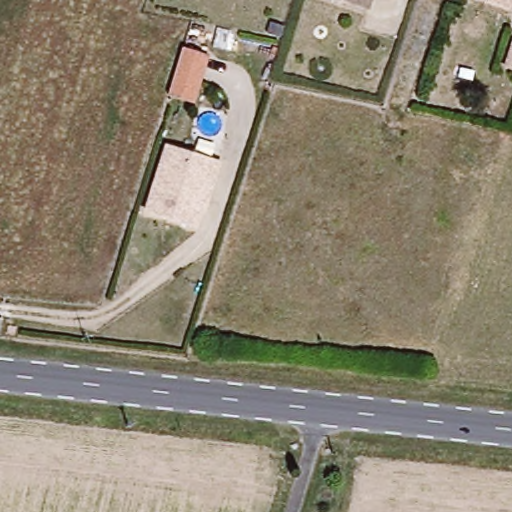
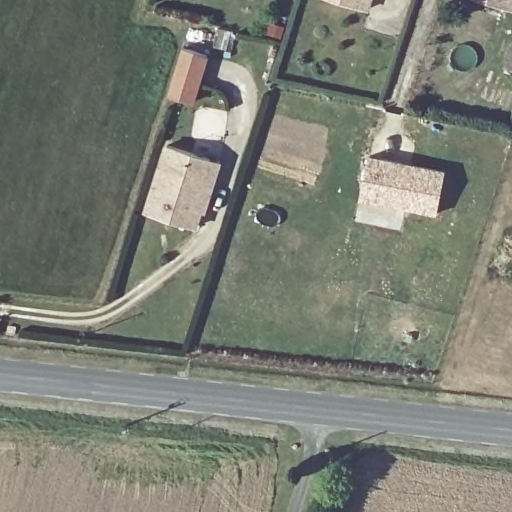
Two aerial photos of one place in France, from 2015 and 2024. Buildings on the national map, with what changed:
unchanged [(343,0),(364,0),(362,6),(343,0)]
unchanged [(478,0),(512,0),(512,2),(508,10),(478,0)]
unchanged [(512,38),(512,66),(501,62),(508,37),(512,38)]
unchanged [(209,56),(192,104),(169,95),(176,76),(185,49),(209,56)]
unchanged [(220,164),(203,213),(200,212),(194,230),(145,213),(168,146),(211,160),(220,164)]
new [(359,198),(367,155),(444,170),(436,213),(359,198)]

